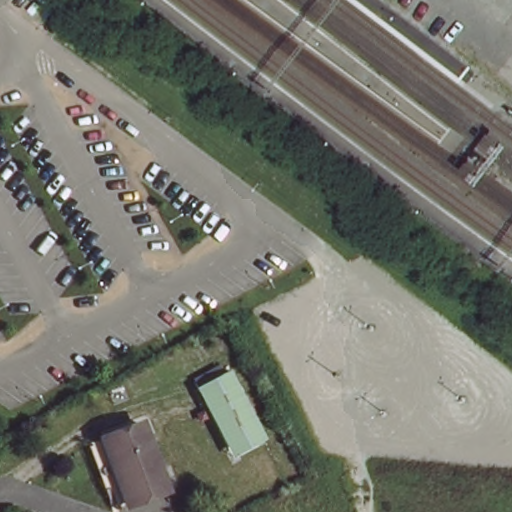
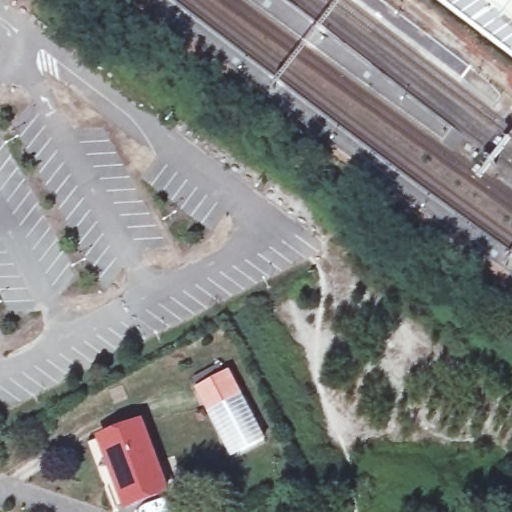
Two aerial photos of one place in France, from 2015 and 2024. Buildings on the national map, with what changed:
new [(437,0),(512,0),(512,57),(437,0)]
unchanged [(231,455),(207,409),(197,389),(229,373),(240,396),(261,440),(231,455)]
unchanged [(150,421),(173,487),(136,501),(113,433),(150,421)]
unchanged [(136,501),(123,505),(118,485),(112,487),(97,439),(113,433),(136,501)]

